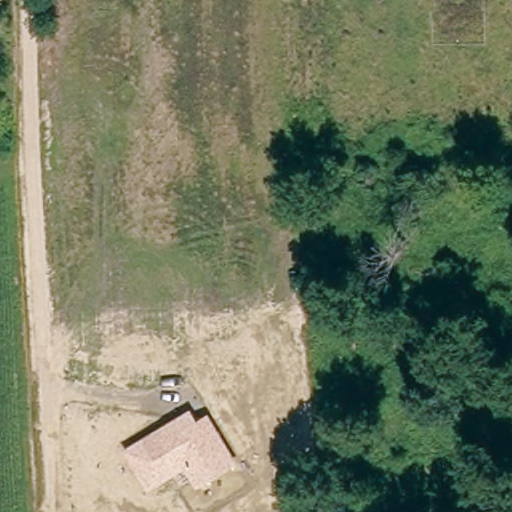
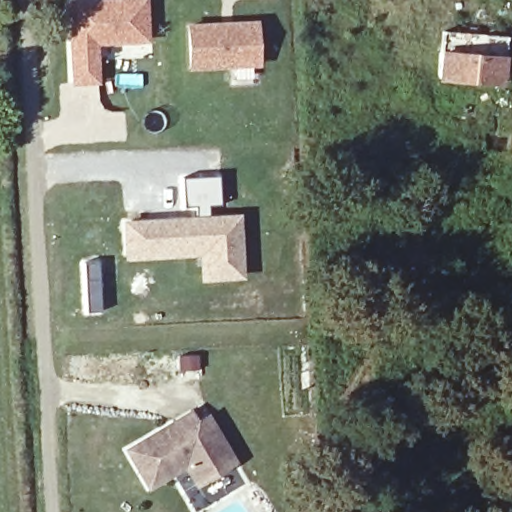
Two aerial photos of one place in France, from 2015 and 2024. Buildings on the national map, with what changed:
unchanged [(3,9),(0,9),(0,0),(3,0),(3,9)]
new [(151,43),(98,45),(101,84),(69,86),(63,0),(149,0),(151,43)]
new [(188,70),(186,24),(258,20),(260,66),(188,70)]
new [(508,37),(507,56),(504,85),(438,79),(441,50),(443,30),(508,37)]
new [(241,214),(246,279),(201,284),(199,256),(125,260),(122,220),(241,214)]
unchanged [(196,421),(207,414),(239,466),(195,488),(183,468),(146,488),(124,448),(190,409),(196,421)]

